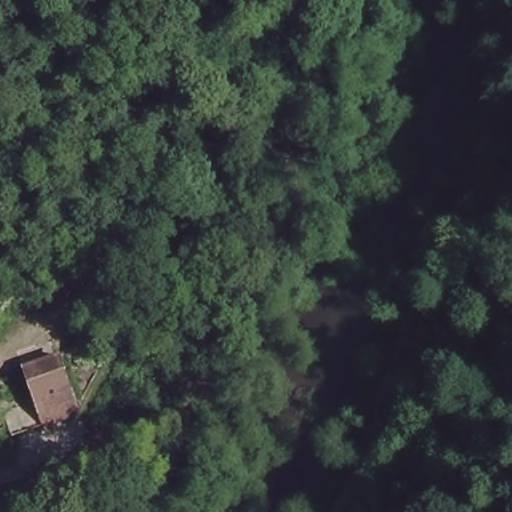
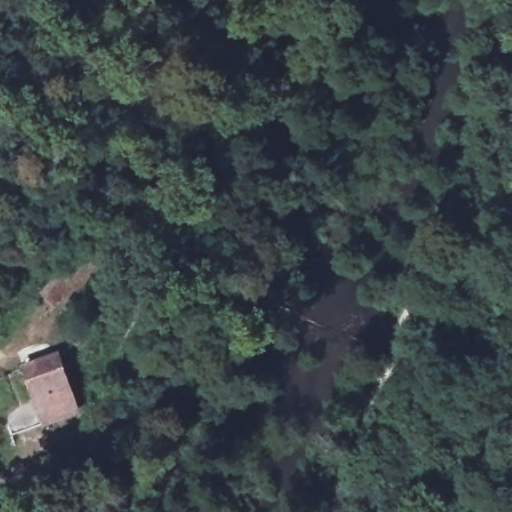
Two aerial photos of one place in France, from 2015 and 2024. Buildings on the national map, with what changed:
unchanged [(56,275),(49,264),(83,243),(110,273),(83,293),(67,286),(52,299),(33,290),(56,275)]
unchanged [(76,390),(42,405),(28,373),(19,353),(45,342),(55,338),(76,390)]
unchanged [(0,423),(0,385),(28,373),(42,405),(0,423)]

